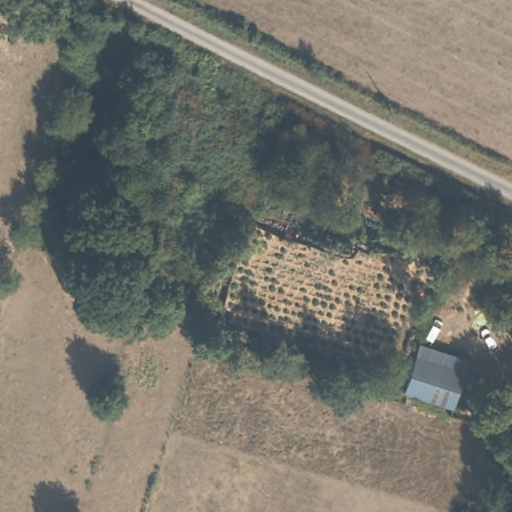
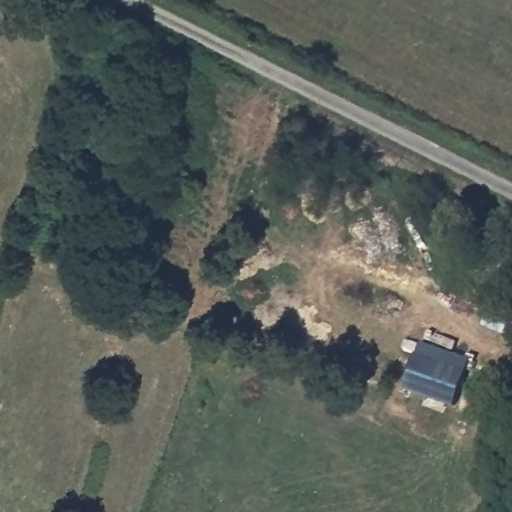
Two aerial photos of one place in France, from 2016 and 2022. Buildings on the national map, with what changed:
unchanged [(465,367),(452,403),(403,386),(415,351),(465,367)]

